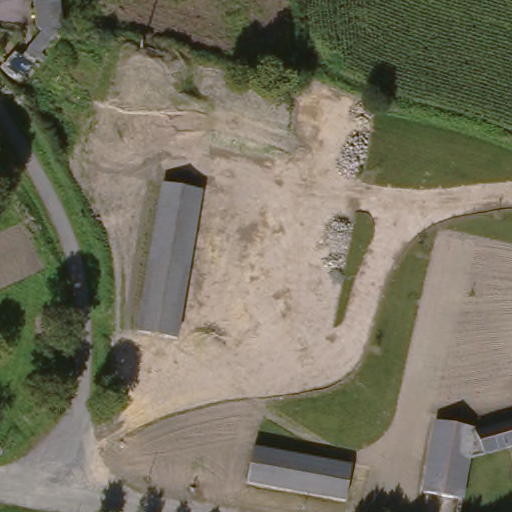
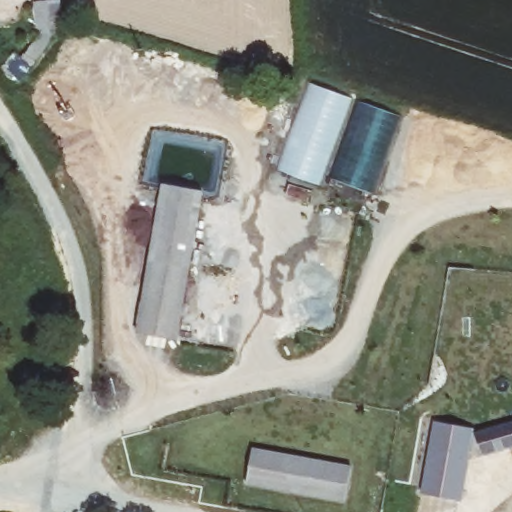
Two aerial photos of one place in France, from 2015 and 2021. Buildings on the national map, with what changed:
new [(312,84),(350,98),(316,182),(279,168),(312,84)]
new [(364,101),(400,115),(370,195),(335,180),(364,101)]
unchanged [(132,340),(158,193),(199,199),(171,347),(132,340)]
unchanged [(512,427),(512,455),(495,459),(495,463),(480,466),(476,437),(512,427)]
unchanged [(467,437),(455,504),(418,496),(431,428),(467,437)]
unchanged [(346,470),(340,510),(243,493),(250,454),(346,470)]

